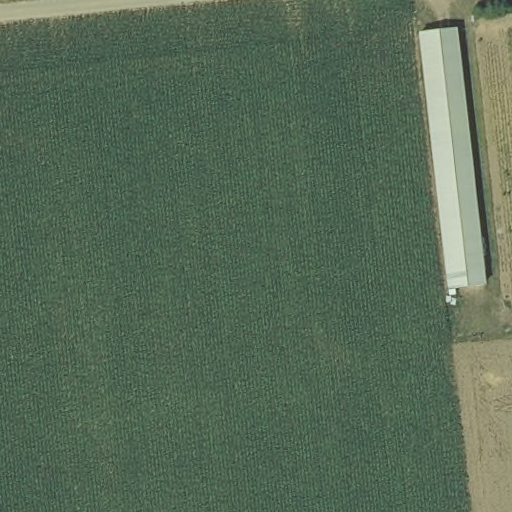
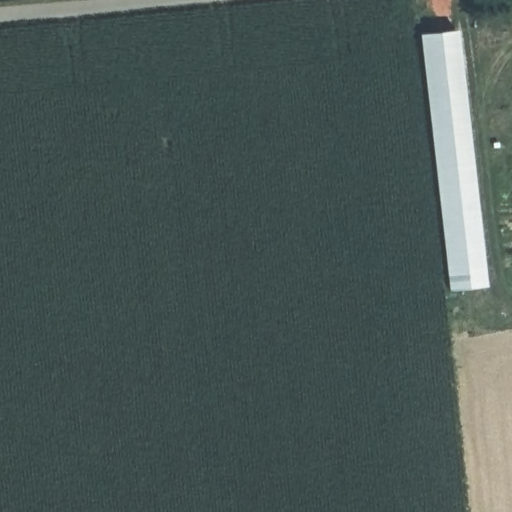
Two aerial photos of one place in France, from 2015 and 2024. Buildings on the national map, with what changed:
unchanged [(420,36),(457,31),(485,284),(448,290),(420,36)]

